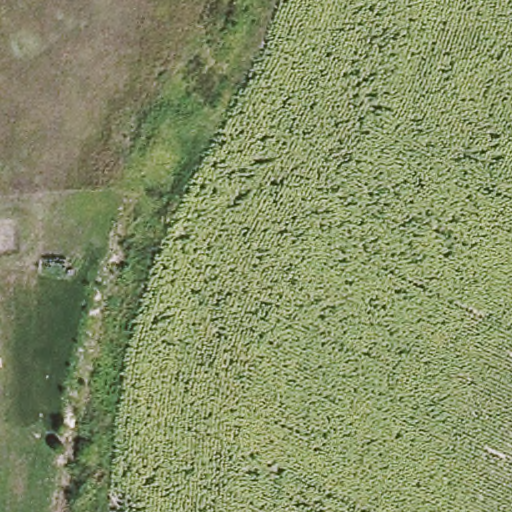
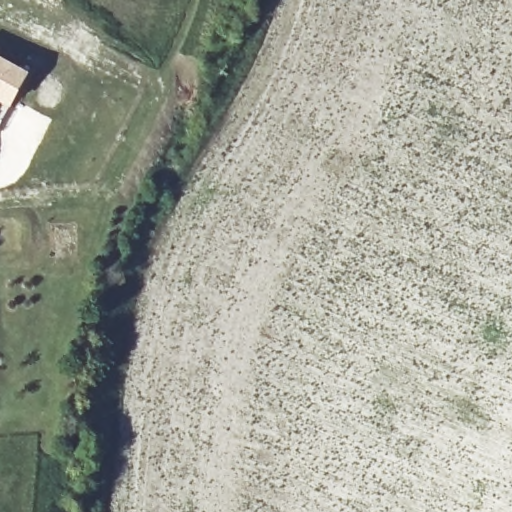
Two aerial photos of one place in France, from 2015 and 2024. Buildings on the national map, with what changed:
new [(30,71),(10,107),(0,101),(0,54),(30,71)]

